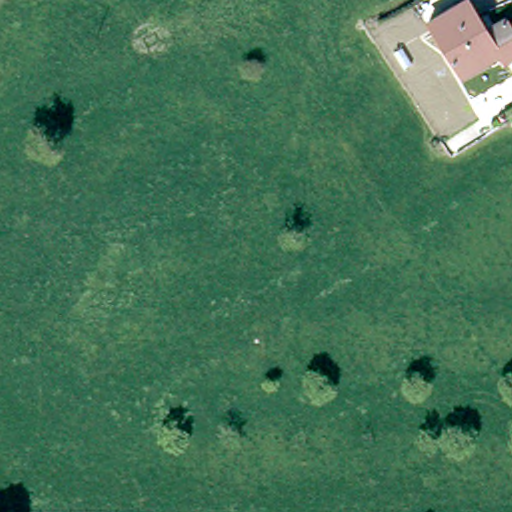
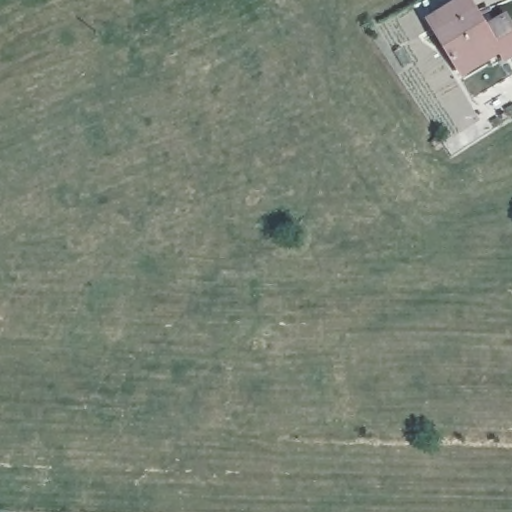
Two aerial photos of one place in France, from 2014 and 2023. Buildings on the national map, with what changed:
unchanged [(512,6),(512,44),(511,42),(471,67),(434,16),(458,0),(479,0),(494,20),(512,6)]

